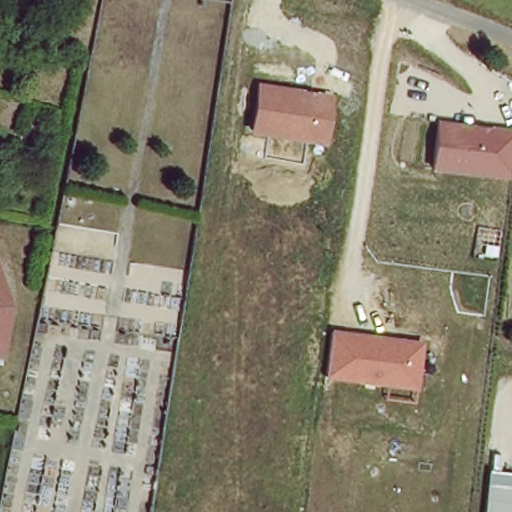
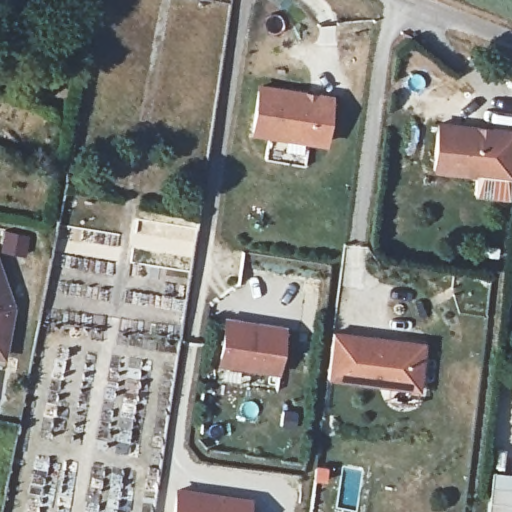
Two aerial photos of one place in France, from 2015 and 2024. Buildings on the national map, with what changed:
unchanged [(252,133),(259,84),(334,96),(326,146),(252,133)]
unchanged [(432,170),(437,121),(512,130),(512,164),(510,179),(432,170)]
unchanged [(6,360),(0,359),(0,261),(17,307),(6,360)]
new [(224,317),(287,326),(279,374),(218,366),(224,317)]
unchanged [(419,391),(329,378),(334,332),(426,343),(419,391)]
unchanged [(495,474),(512,476),(512,512),(491,512),(495,474)]
new [(177,488),(253,498),(251,512),(173,512),(177,488)]

